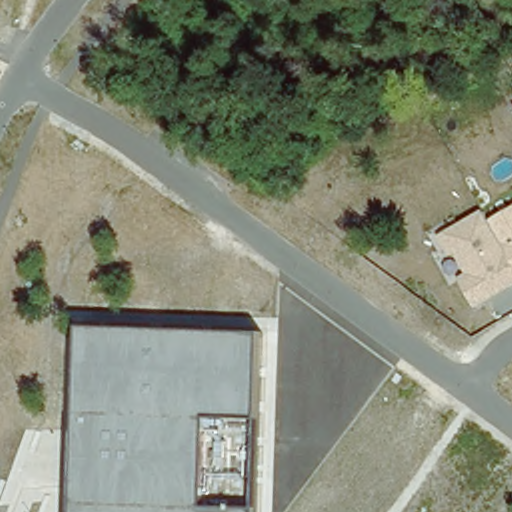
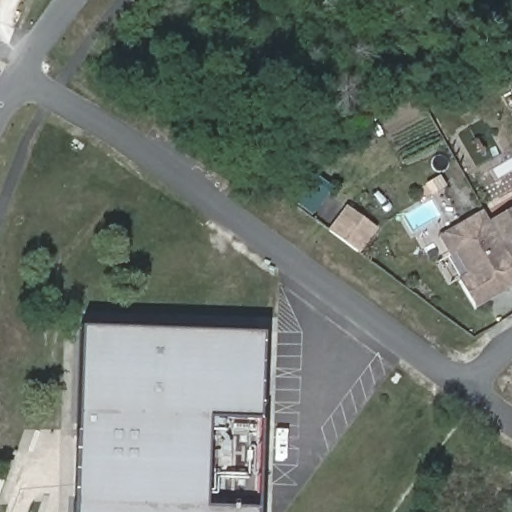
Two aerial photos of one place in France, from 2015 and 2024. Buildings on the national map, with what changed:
new [(349,206),(377,227),(359,251),(331,231),(349,206)]
unchanged [(459,277),(466,273),(455,253),(449,256),(439,236),(483,210),(491,224),(492,225),(512,260),(512,286),(475,307),(459,277)]
unchanged [(512,212),(512,260),(491,224),(512,212)]
unchanged [(256,512),(73,512),(80,327),(262,332),(258,418),(256,508),(256,512)]

